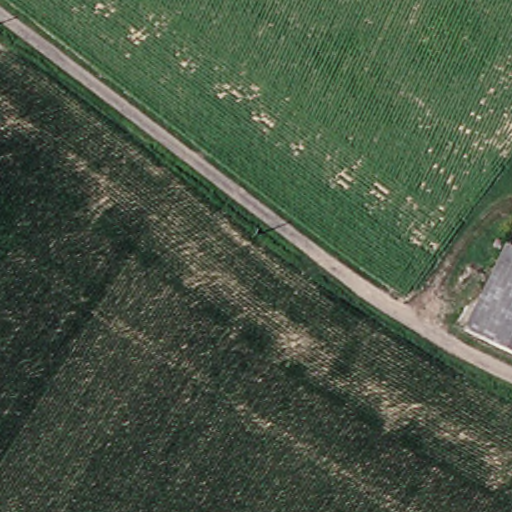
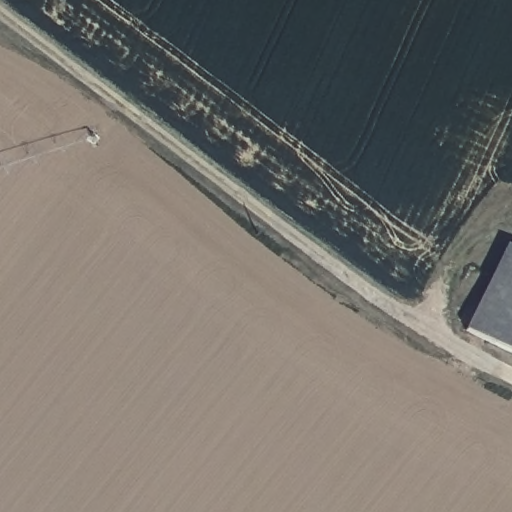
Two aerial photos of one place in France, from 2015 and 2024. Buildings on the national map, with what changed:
unchanged [(512,234),(512,357),(457,331),(507,231),(512,234)]

